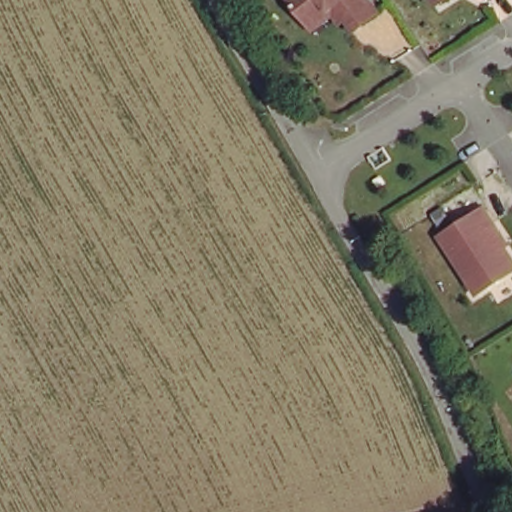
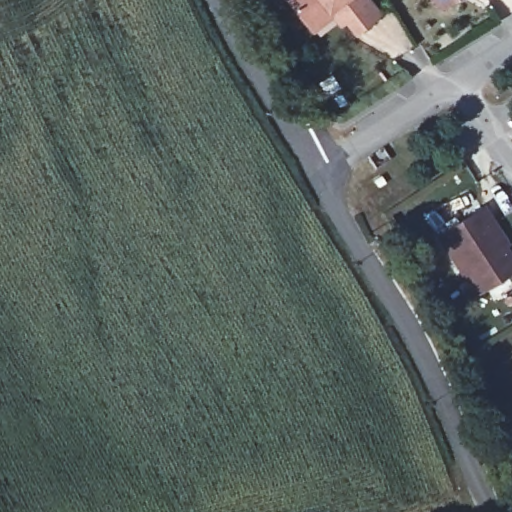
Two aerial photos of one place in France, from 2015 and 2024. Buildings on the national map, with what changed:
unchanged [(335,11),(315,26),(311,21),(295,0),(373,0),(381,10),(357,28),(348,15),(342,20),(335,11)]
unchanged [(489,222),(512,258),(512,267),(476,290),(439,233),(483,205),(492,220),(489,222)]

